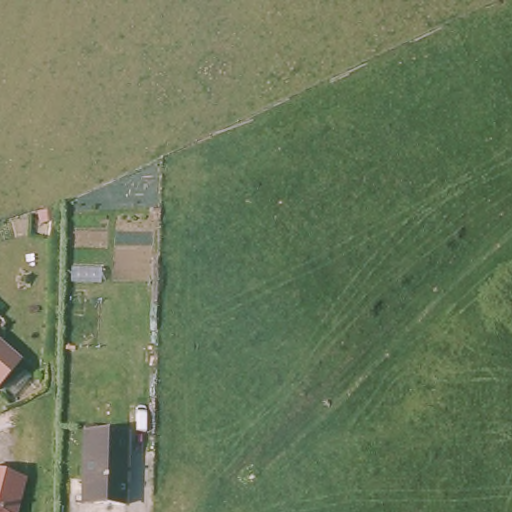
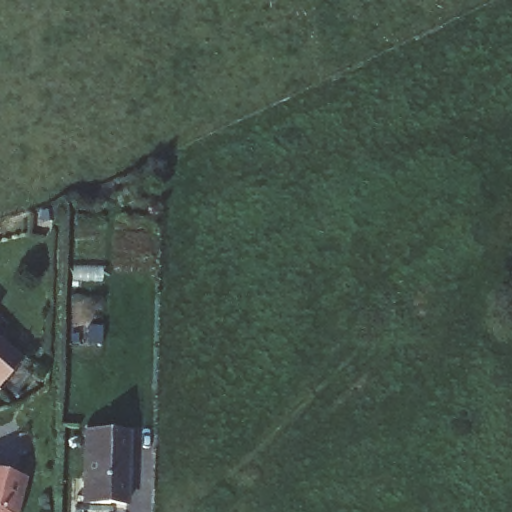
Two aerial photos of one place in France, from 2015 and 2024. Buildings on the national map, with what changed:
unchanged [(17,360),(0,379),(0,346),(17,360)]
unchanged [(85,433),(128,434),(126,505),(83,503),(85,433)]
unchanged [(26,478),(17,512),(0,512),(0,471),(26,478)]

